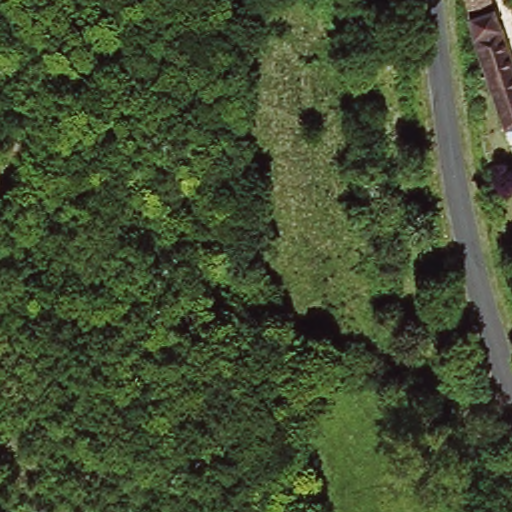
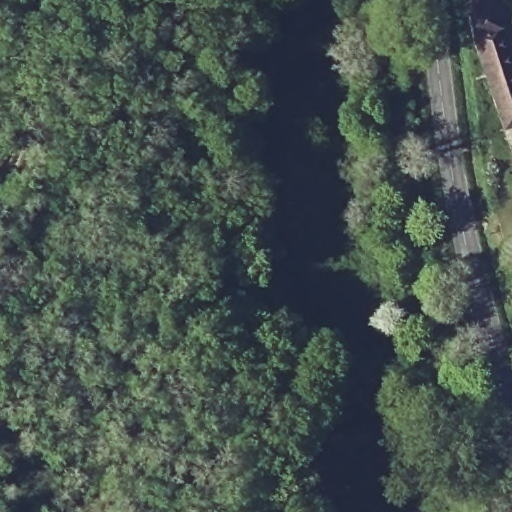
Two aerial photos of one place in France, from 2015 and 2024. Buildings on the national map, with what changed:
unchanged [(507,132),(470,35),(465,2),(464,0),(489,0),(512,65),(512,130),(507,132)]

